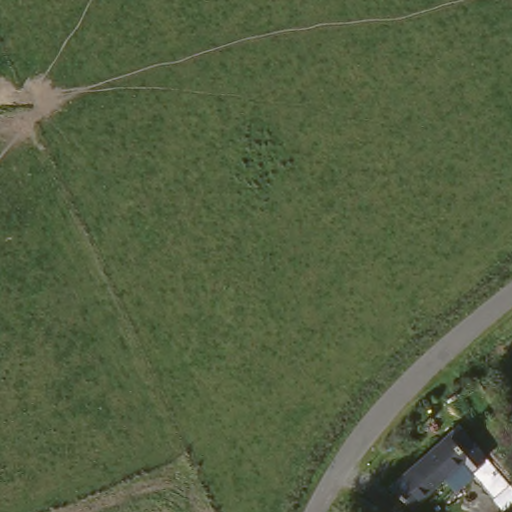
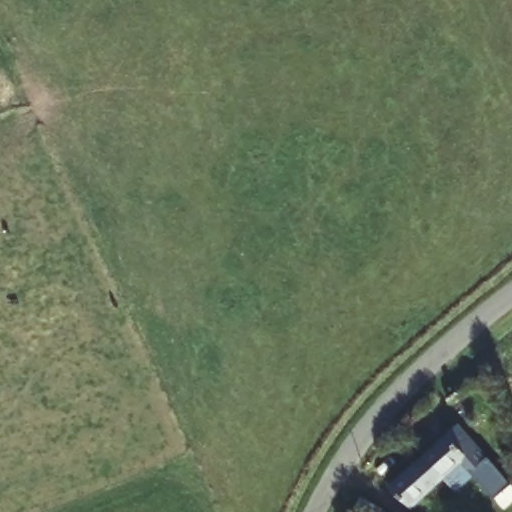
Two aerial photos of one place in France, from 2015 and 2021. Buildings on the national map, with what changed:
unchanged [(444,401),(462,381),(490,408),(470,428),(444,401)]
unchanged [(385,486),(411,463),(450,421),(471,445),(503,481),(488,496),(459,461),(415,512),(410,512),(385,486)]

